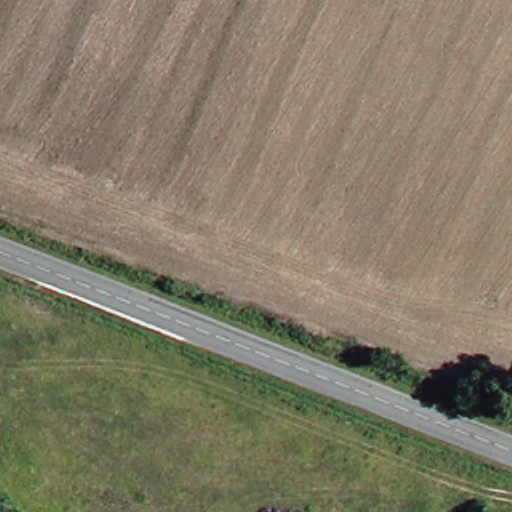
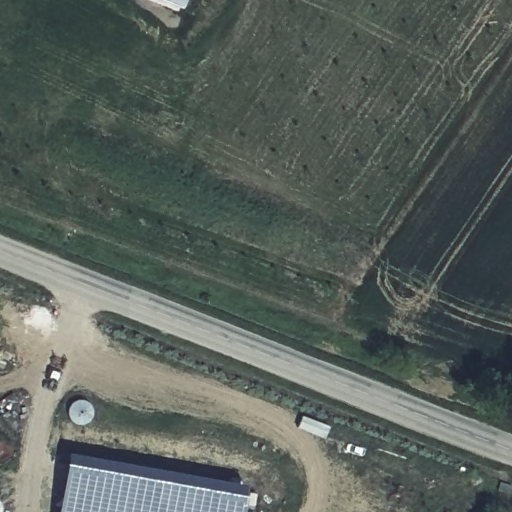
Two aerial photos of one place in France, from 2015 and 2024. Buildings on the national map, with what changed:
new [(159,0),(186,0),(182,9),(159,0)]
new [(244,496),(241,512),(74,512),(83,465),(244,496)]

